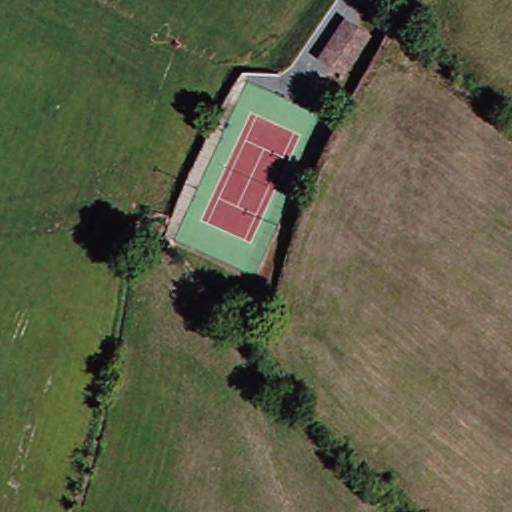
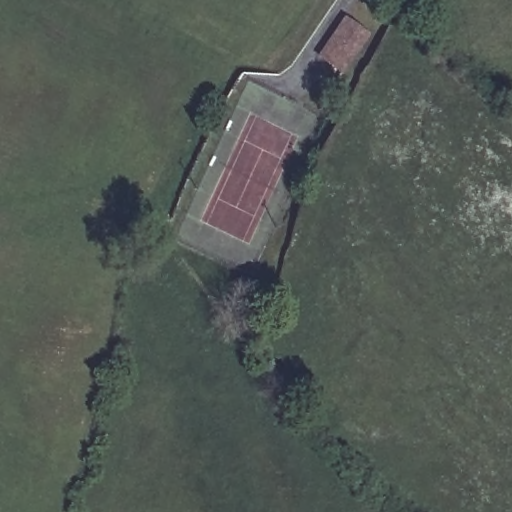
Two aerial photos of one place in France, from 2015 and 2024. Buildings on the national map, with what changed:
unchanged [(351,18),(374,38),(359,59),(349,74),(326,55),(338,38),(351,18)]

